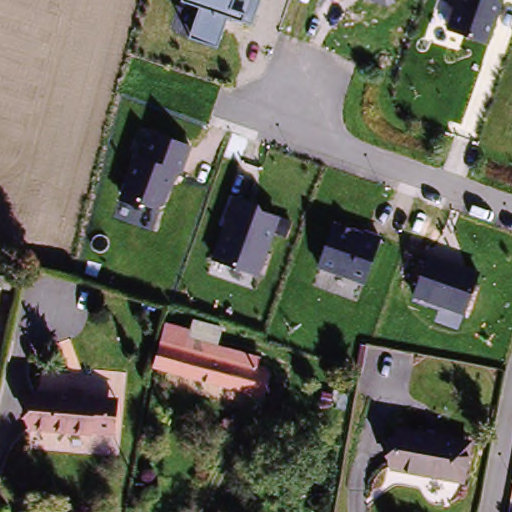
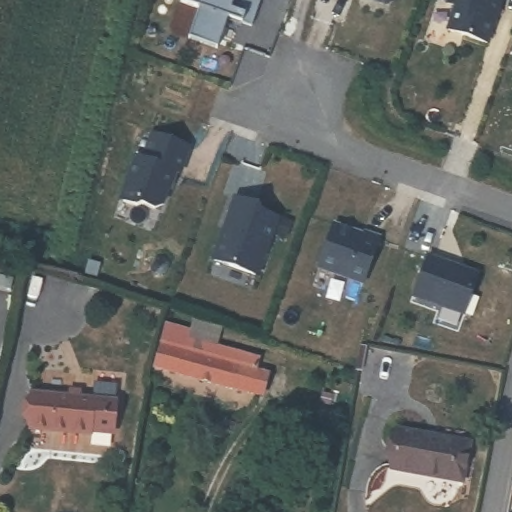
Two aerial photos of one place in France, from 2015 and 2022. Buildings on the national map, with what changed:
unchanged [(240,24),(227,19),(217,48),(188,38),(199,7),(181,1),(181,0),(260,0),(250,26),(240,24)]
unchanged [(385,6),(366,0),(396,0),(395,1),(385,6)]
unchanged [(446,30),(452,14),(447,12),(451,0),(497,0),(502,2),(488,45),(446,30)]
unchanged [(182,175),(175,173),(163,208),(152,211),(120,200),(135,154),(144,158),(152,134),(191,149),(182,175)]
unchanged [(258,279),(212,262),(235,201),(280,218),(258,279)]
unchanged [(382,239),(363,288),(315,270),(333,222),(382,239)]
unchanged [(480,273),(465,317),(412,298),(428,254),(480,273)]
unchanged [(262,403),(182,382),(155,374),(160,348),(163,332),(192,339),(195,328),(220,336),(218,345),(265,359),(262,376),(270,377),(262,403)]
unchanged [(83,436),(82,441),(20,435),(25,399),(60,402),(62,390),(73,393),(72,402),(83,403),(103,405),(102,420),(101,439),(83,436)]
unchanged [(460,487),(390,475),(397,436),(468,450),(460,487)]

